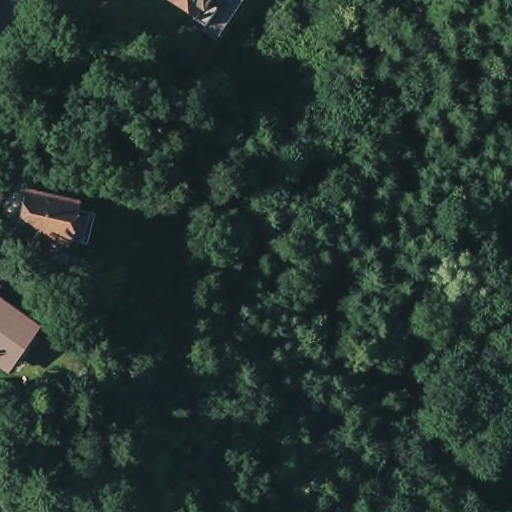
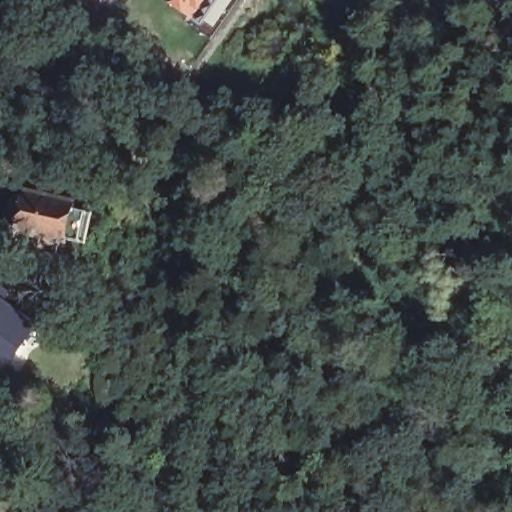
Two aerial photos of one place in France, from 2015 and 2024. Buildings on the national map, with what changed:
unchanged [(195,17),(168,0),(221,0),(211,15),(201,16),(197,14),(195,17)]
unchanged [(1,113),(0,113),(0,112),(1,113)]
unchanged [(72,247),(52,242),(51,246),(45,245),(43,254),(14,246),(16,237),(1,233),(12,195),(61,207),(61,209),(81,215),(72,247)]
unchanged [(4,278),(0,275),(0,261),(11,268),(4,278)]
unchanged [(14,367),(0,357),(0,285),(17,297),(9,308),(41,331),(14,367)]
unchanged [(56,512),(42,512),(30,502),(37,494),(58,510),(56,512)]

